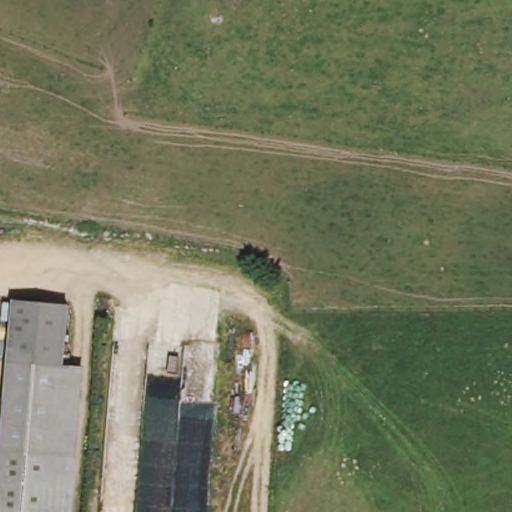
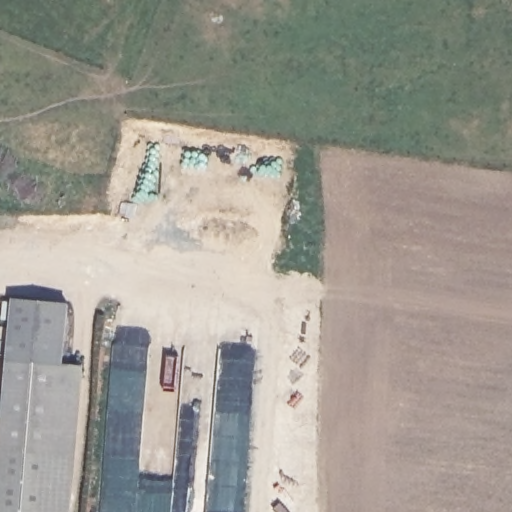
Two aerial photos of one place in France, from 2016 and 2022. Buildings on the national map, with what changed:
unchanged [(69,305),(62,364),(82,366),(74,457),(0,452),(0,432),(10,300),(69,305)]
unchanged [(72,512),(0,512),(0,452),(74,457),(72,512)]

